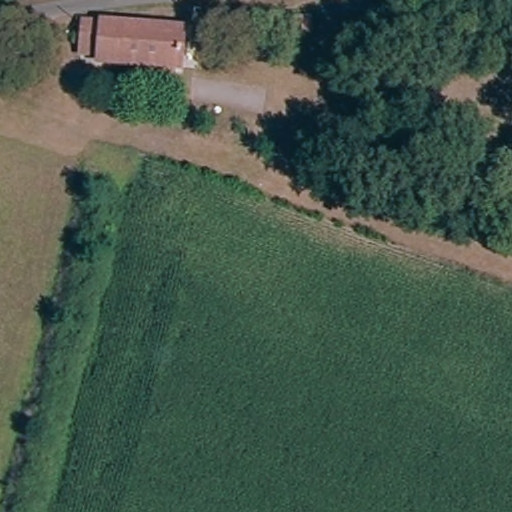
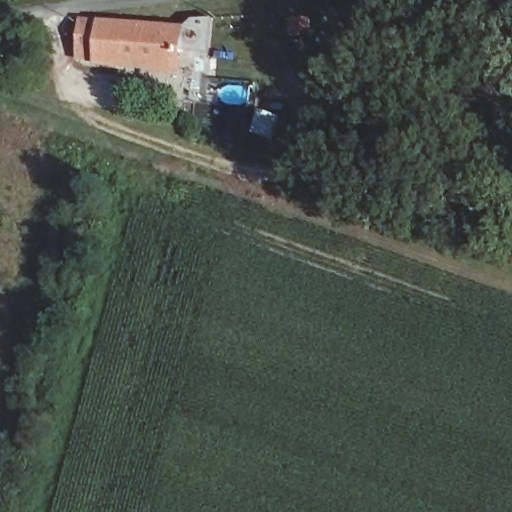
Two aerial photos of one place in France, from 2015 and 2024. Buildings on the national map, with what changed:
unchanged [(83,45),(84,25),(185,30),(179,78),(96,67),(82,65),(83,45)]

